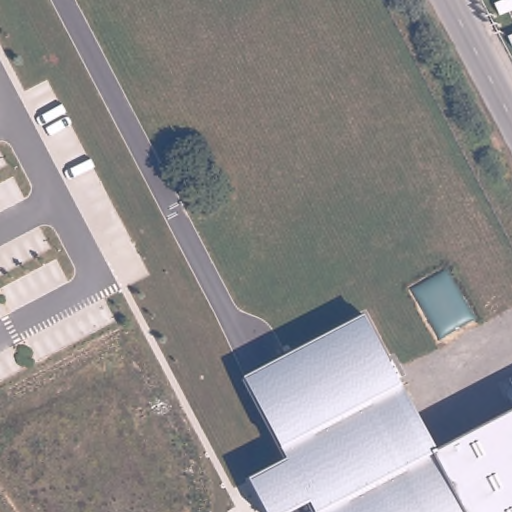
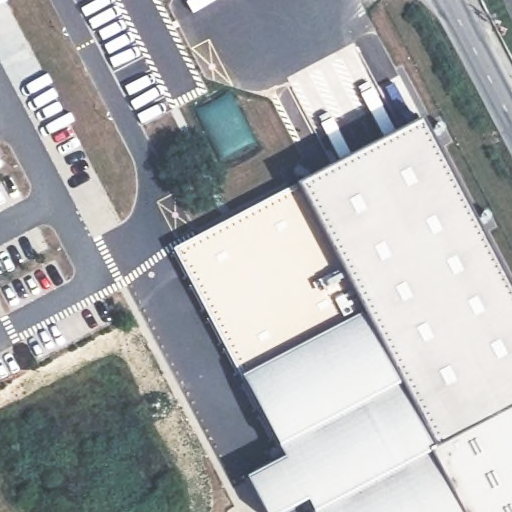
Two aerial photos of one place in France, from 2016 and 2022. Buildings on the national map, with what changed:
new [(399,384),(361,316),(241,378),(174,251),(298,192),(294,186),(421,120),(512,293),(512,409),(437,450),(399,384)]
unchanged [(287,512),(265,512),(250,479),(286,458),(281,448),(241,378),(361,316),(399,384),(437,450),(512,409),(512,512),(314,512),(308,501),(287,512)]

